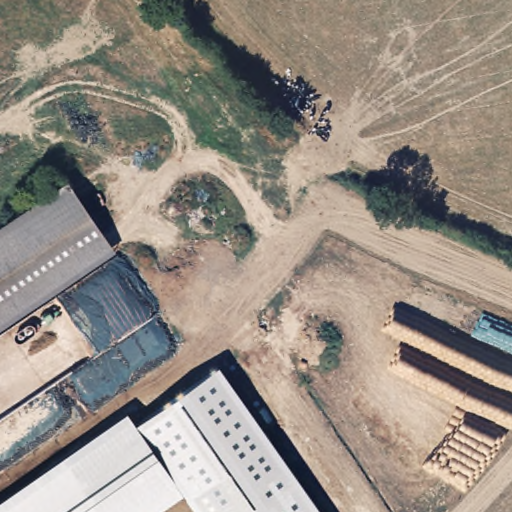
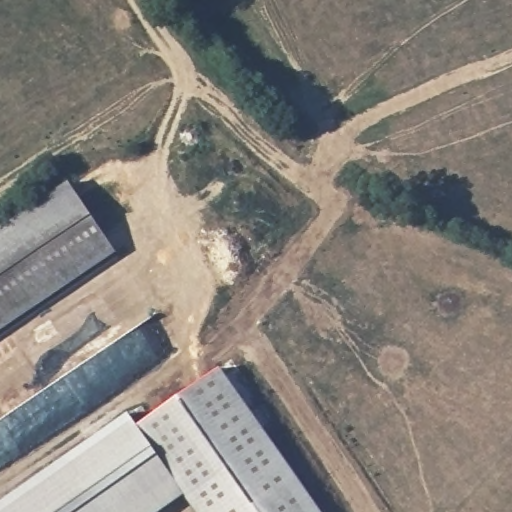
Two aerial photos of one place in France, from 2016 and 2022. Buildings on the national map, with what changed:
unchanged [(101,233),(0,309),(0,231),(63,184),(101,233)]
unchanged [(111,247),(0,330),(0,309),(101,233),(111,247)]
unchanged [(135,426),(220,367),(320,512),(191,512),(182,500),(164,512),(0,512),(0,502),(125,413),(135,426)]

